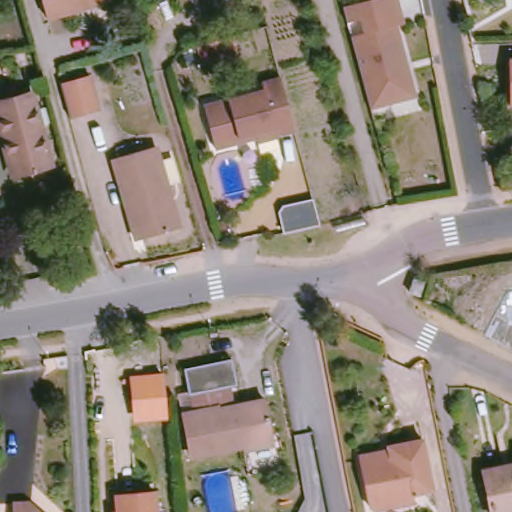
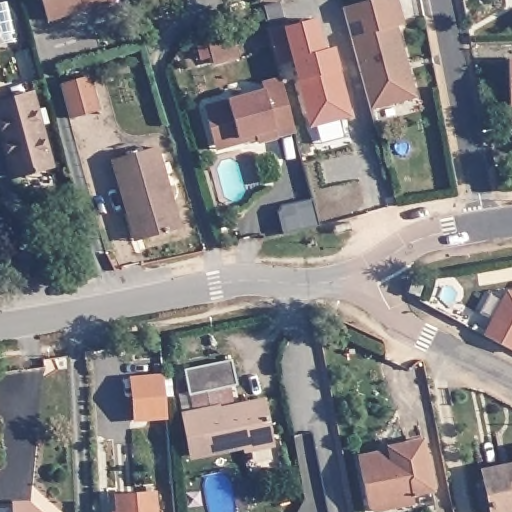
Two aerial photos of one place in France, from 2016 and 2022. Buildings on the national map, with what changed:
unchanged [(80,7),(82,13),(50,21),(44,0),(102,0),(80,7)]
unchanged [(400,32),(415,102),(373,111),(351,8),(387,0),(400,0),(406,31),(400,32)]
new [(279,2),(284,20),(271,23),(266,5),(279,2)]
new [(272,31),(319,18),(327,50),(337,48),(355,116),(309,128),(295,83),(300,80),(295,60),(281,64),(272,31)]
unchanged [(510,103),(511,58),(512,58),(512,103),(510,103)]
unchanged [(75,115),(67,82),(92,75),(101,109),(75,115)]
unchanged [(277,135),(278,141),(259,146),(256,135),(216,146),(206,111),(263,96),(262,87),(286,80),(297,130),(277,135)]
unchanged [(0,138),(0,98),(27,90),(47,164),(8,174),(0,138)]
unchanged [(144,237),(136,210),(127,212),(112,157),(155,146),(179,226),(144,237)]
unchanged [(428,292),(417,289),(422,275),(432,278),(428,292)]
new [(512,291),(512,349),(483,334),(507,291),(512,291)]
unchanged [(245,455),(243,446),(191,456),(185,419),(220,413),(217,393),(192,397),(187,370),(236,361),(241,388),(232,390),(235,409),(265,403),(273,449),(245,455)]
unchanged [(164,374),(168,419),(134,422),(130,375),(164,374)]
unchanged [(395,509),(380,512),(374,512),(362,456),(379,453),(380,457),(391,456),(390,447),(423,441),(434,493),(400,499),(395,509)]
unchanged [(506,512),(491,512),(483,468),(512,461),(512,492),(507,493),(510,512),(506,512)]
unchanged [(157,493),(158,512),(119,512),(119,496),(157,493)]
unchanged [(30,505),(30,512),(12,512),(12,504),(30,505)]

